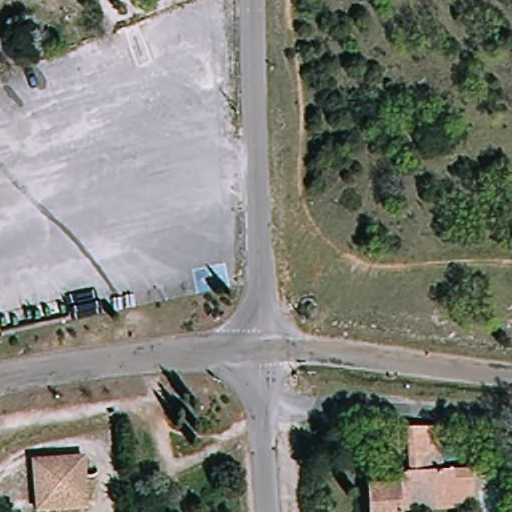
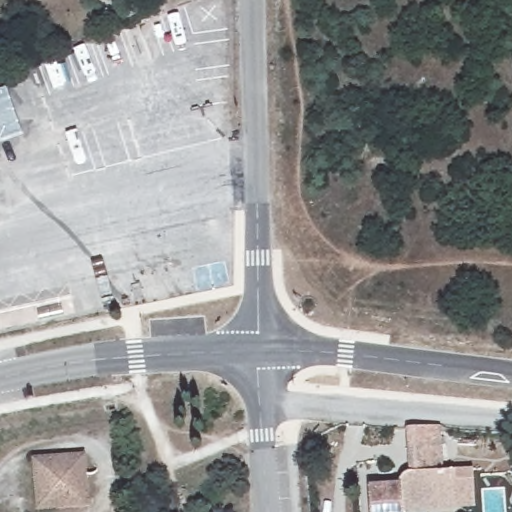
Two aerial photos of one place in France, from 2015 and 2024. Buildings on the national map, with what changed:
new [(23,133),(0,141),(0,90),(8,87),(23,133)]
unchanged [(365,486),(391,485),(396,478),(402,470),(402,433),(430,436),(438,437),(438,472),(470,471),(471,491),(453,492),(454,502),(453,509),(399,511),(399,512),(366,512),(365,486)]
unchanged [(84,455),(86,503),(33,506),(31,457),(84,455)]
unchanged [(505,512),(484,512),(483,496),(505,495),(505,512)]

